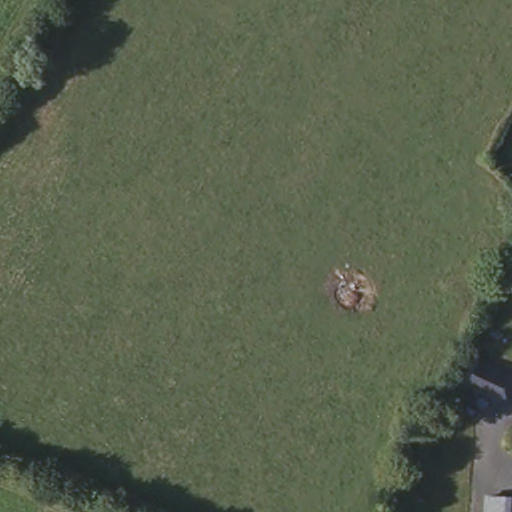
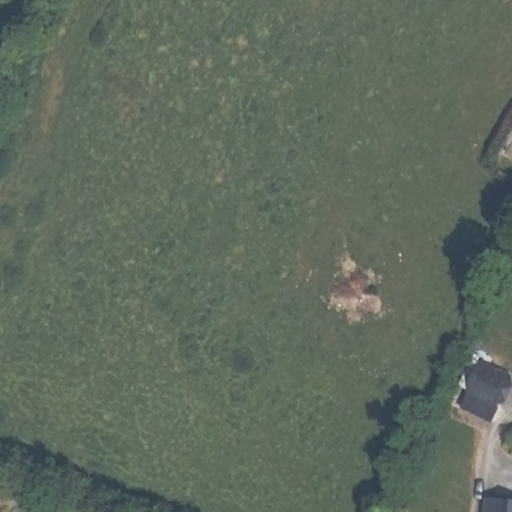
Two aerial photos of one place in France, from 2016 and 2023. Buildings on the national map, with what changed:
unchanged [(512,370),(512,374),(493,419),(461,407),(479,357),(512,370)]
unchanged [(492,512),(493,493),(512,495),(512,512),(492,512)]

